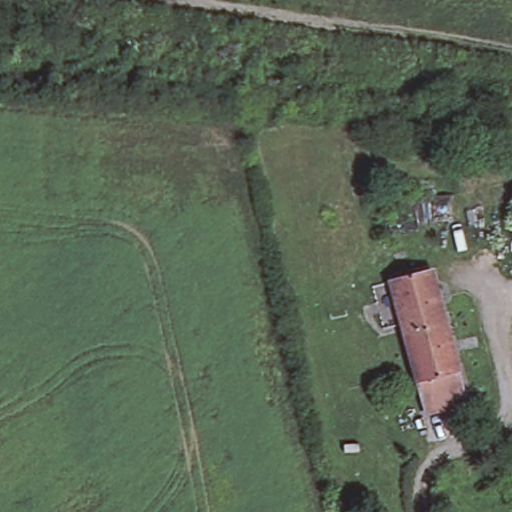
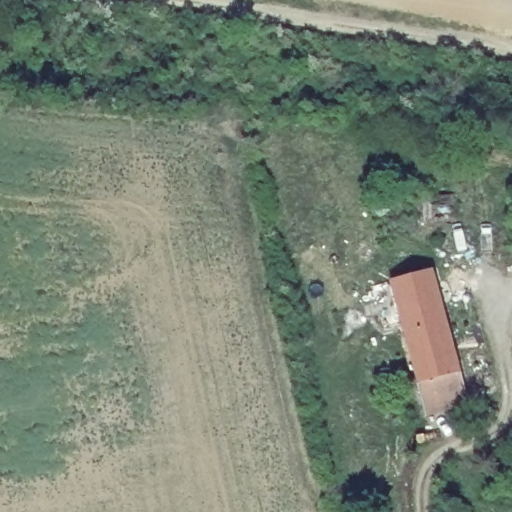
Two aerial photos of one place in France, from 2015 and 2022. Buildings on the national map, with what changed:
unchanged [(459,373),(421,383),(393,280),(432,270),(459,373)]
unchanged [(466,400),(428,409),(421,383),(459,373),(466,400)]

